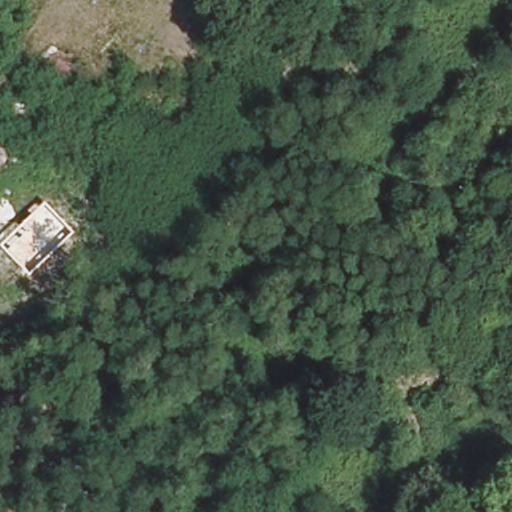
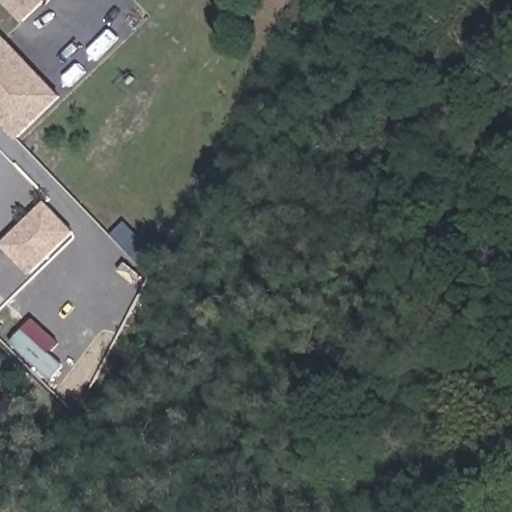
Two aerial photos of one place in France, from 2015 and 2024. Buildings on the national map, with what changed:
new [(0,0),(47,0),(23,23),(0,0)]
new [(17,138),(0,120),(0,43),(3,39),(60,97),(17,138)]
new [(31,276),(1,244),(44,200),(75,232),(31,276)]
new [(58,343),(48,353),(62,368),(48,381),(9,344),(34,318),(58,343)]

